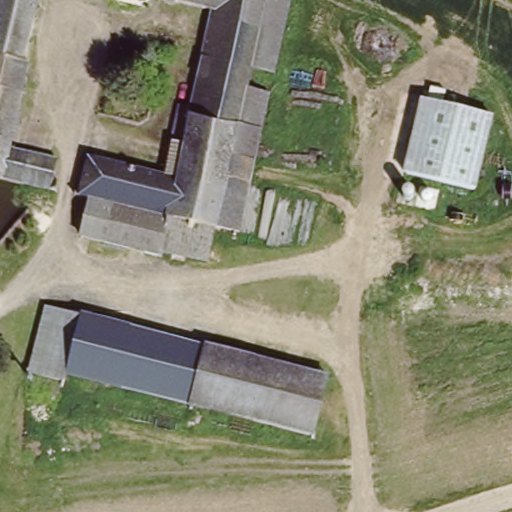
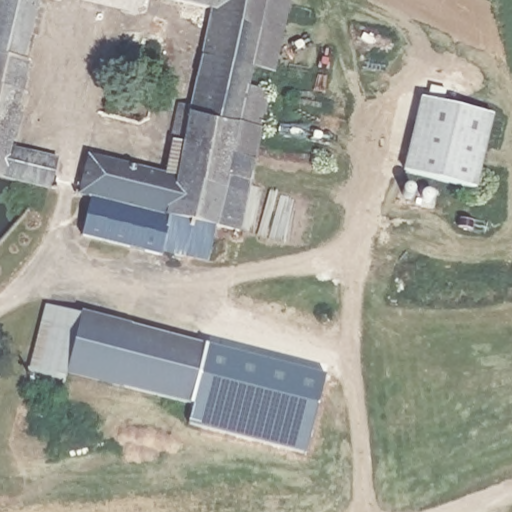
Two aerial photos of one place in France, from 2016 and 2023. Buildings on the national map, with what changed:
unchanged [(54,146),(45,182),(43,181),(0,171),(0,0),(43,0),(9,135),(54,146)]
unchanged [(257,130),(237,227),(215,223),(208,255),(160,244),(149,241),(156,210),(89,193),(76,190),(85,153),(181,177),(189,146),(174,142),(184,102),(193,105),(216,14),(161,0),(260,0),(234,124),(257,130)]
unchanged [(283,0),(270,70),(257,130),(234,124),(260,0),(283,0)]
unchanged [(488,192),(404,179),(416,102),(500,115),(488,192)]
unchanged [(160,244),(157,254),(78,230),(89,193),(156,210),(149,241),(160,244)]
unchanged [(315,435),(71,372),(67,385),(28,374),(48,305),(330,379),(315,435)]
unchanged [(10,356),(0,376),(0,351),(10,356)]

